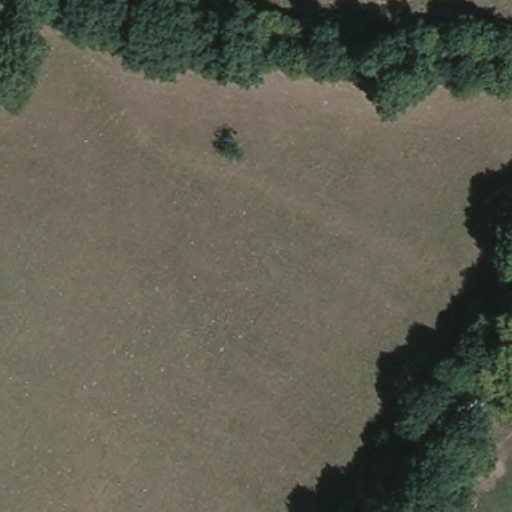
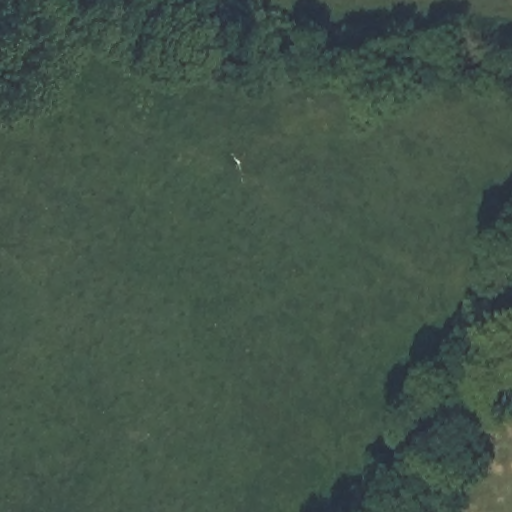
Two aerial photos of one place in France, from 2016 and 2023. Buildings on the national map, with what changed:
[]

